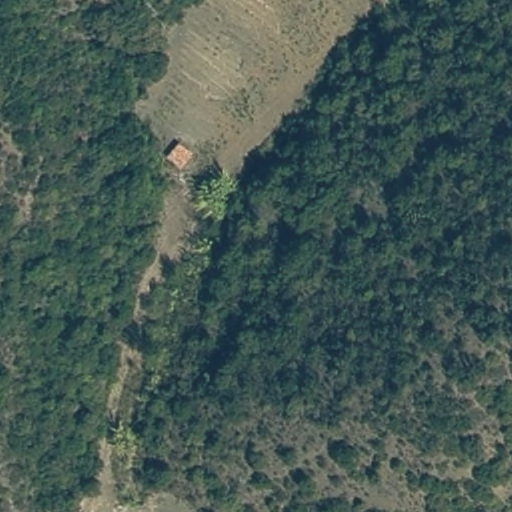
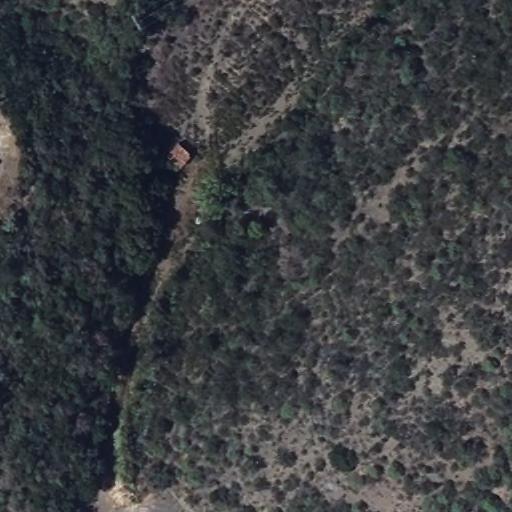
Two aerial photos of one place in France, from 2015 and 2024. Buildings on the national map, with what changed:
unchanged [(197,148),(186,163),(169,151),(182,136),(197,148)]

